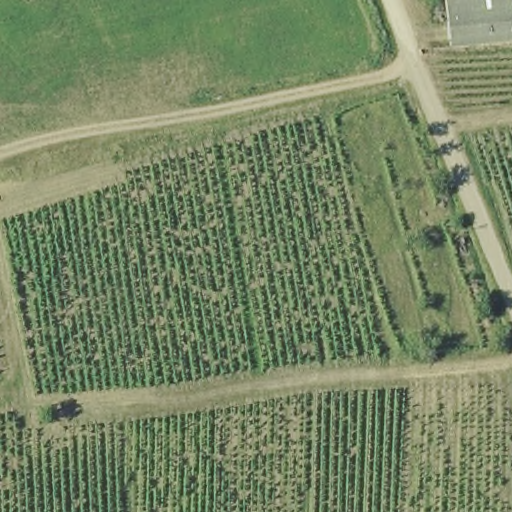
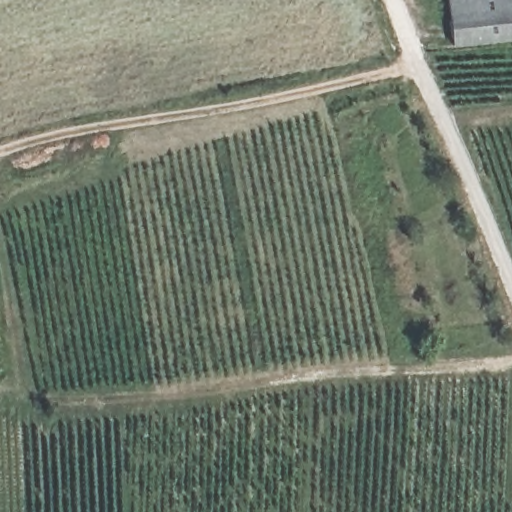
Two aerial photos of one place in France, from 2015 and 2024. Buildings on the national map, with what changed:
unchanged [(448,0),(512,0),(512,36),(452,42),(448,0)]

